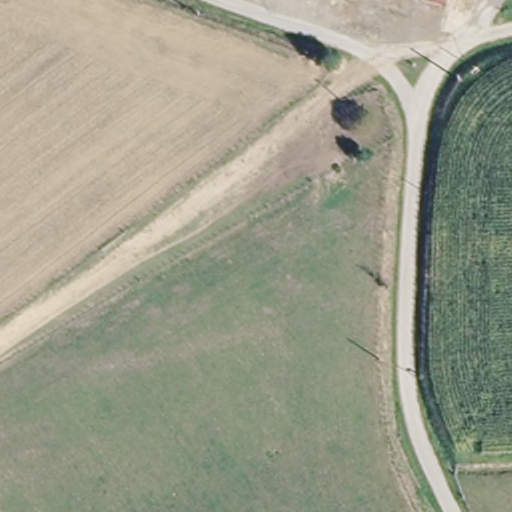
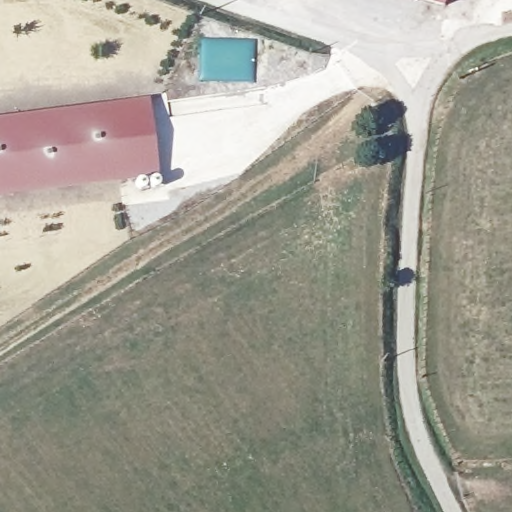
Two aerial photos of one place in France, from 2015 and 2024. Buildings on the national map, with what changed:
unchanged [(452,5),(432,0),(453,0),(452,5)]
new [(158,176),(48,190),(0,195),(0,116),(148,96),(158,176)]

